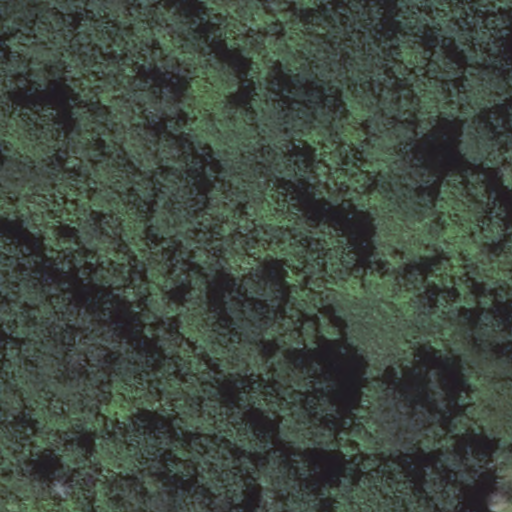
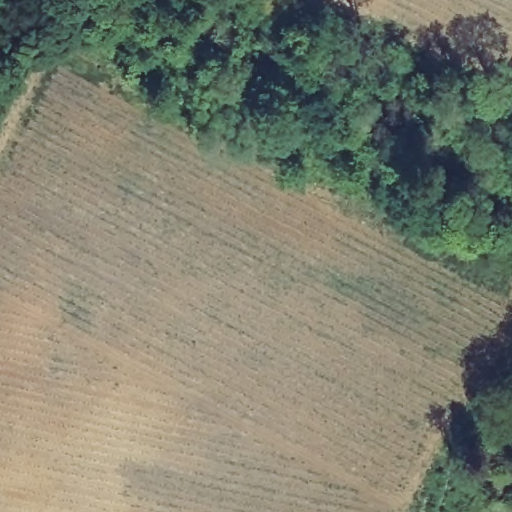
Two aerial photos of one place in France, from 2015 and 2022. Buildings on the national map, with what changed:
unchanged [(483,465),(476,477),(464,471),(471,458),(483,465)]

